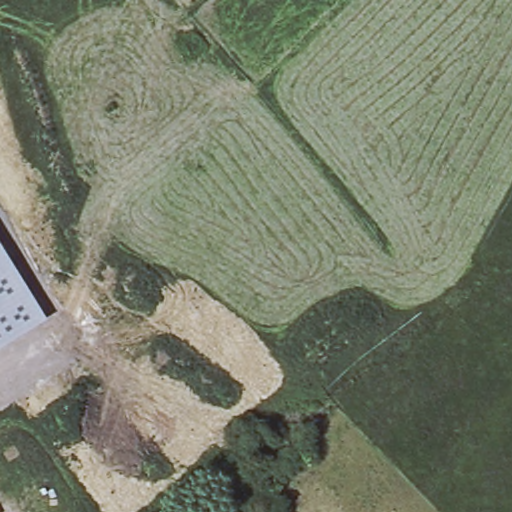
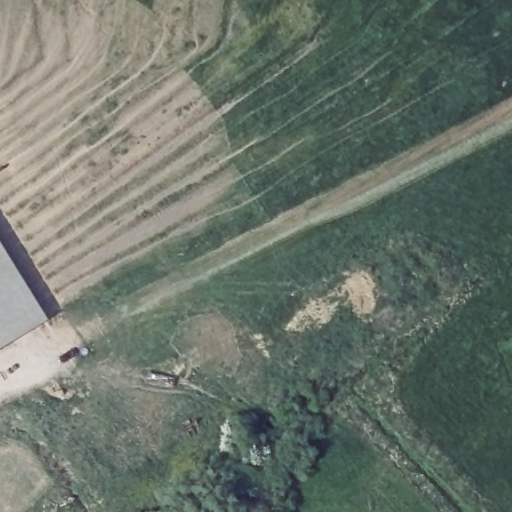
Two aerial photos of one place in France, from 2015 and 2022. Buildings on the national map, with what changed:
unchanged [(50,320),(0,350),(0,240),(50,320)]

